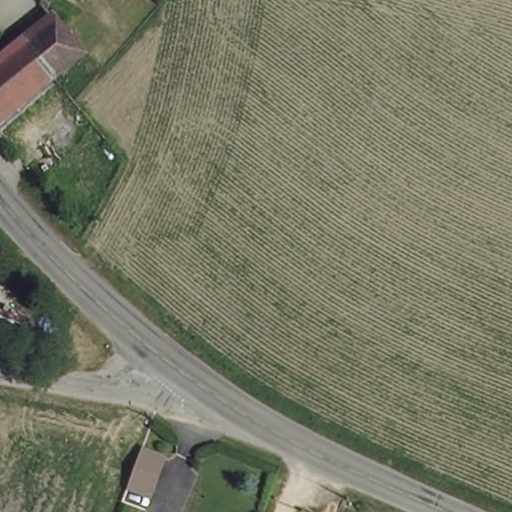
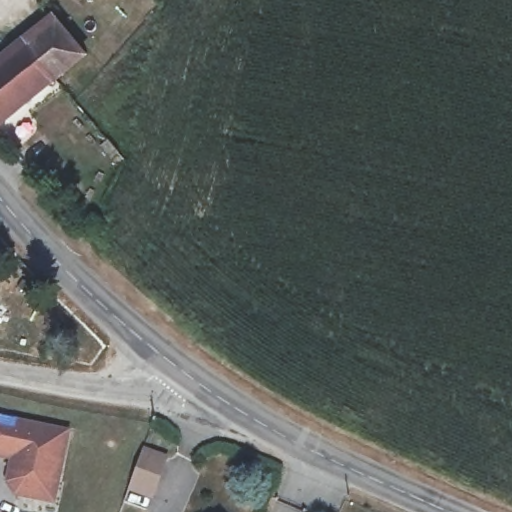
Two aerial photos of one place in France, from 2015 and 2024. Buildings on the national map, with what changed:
unchanged [(55,9),(85,47),(58,70),(27,31),(55,9)]
unchanged [(58,70),(0,120),(0,53),(27,31),(58,70)]
new [(0,458),(0,416),(69,430),(53,502),(12,495),(3,482),(8,460),(0,458)]
new [(139,440),(161,448),(147,485),(125,478),(139,440)]

